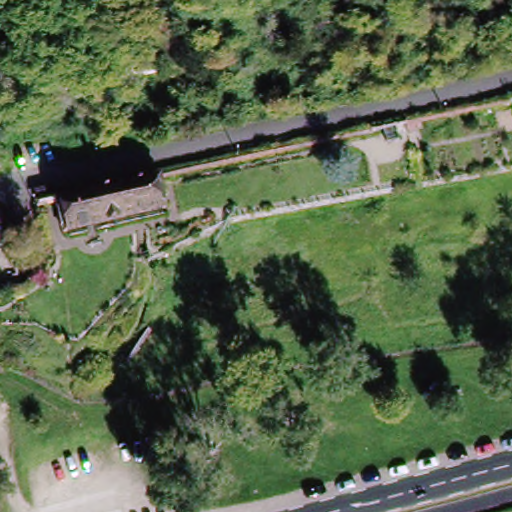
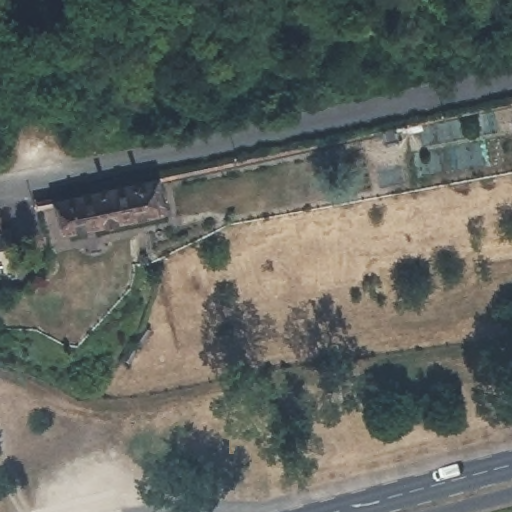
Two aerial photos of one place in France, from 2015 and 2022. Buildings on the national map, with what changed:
unchanged [(399,142),(386,145),(384,130),(397,127),(399,142)]
unchanged [(167,207),(64,229),(59,203),(55,204),(52,195),(56,194),(57,195),(160,174),(167,207)]
unchanged [(6,234),(12,252),(0,256),(0,235),(6,234)]
unchanged [(135,351),(130,347),(142,327),(150,332),(135,351)]

